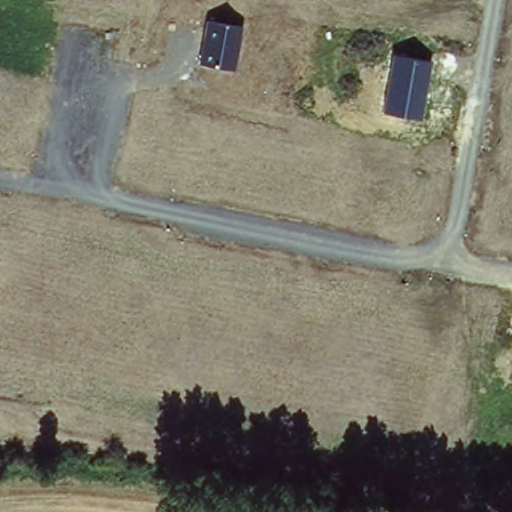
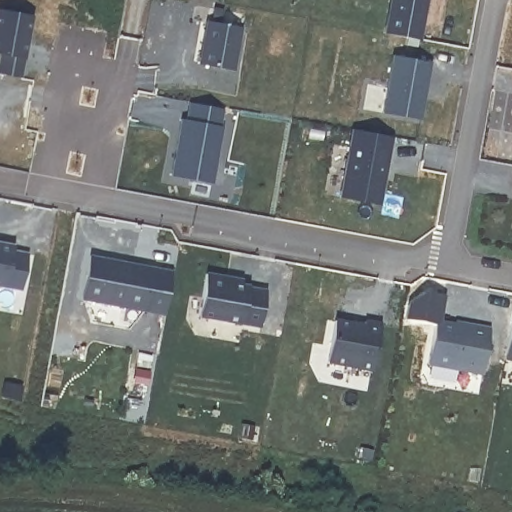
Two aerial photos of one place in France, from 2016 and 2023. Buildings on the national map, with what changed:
new [(393,0),(429,0),(421,41),(386,34),(393,0)]
new [(23,73),(0,68),(0,60),(2,49),(0,48),(0,4),(35,11),(23,73)]
unchanged [(243,27),(235,71),(198,64),(206,20),(243,27)]
unchanged [(422,120),(382,112),(393,54),(432,62),(422,120)]
new [(225,104),(221,121),(224,122),(213,178),(171,170),(182,114),(187,115),(190,97),(225,104)]
new [(394,136),(381,205),(339,197),(352,130),(394,136)]
new [(22,284),(0,280),(0,238),(14,241),(13,246),(29,249),(22,284)]
new [(167,310),(83,295),(91,251),(175,266),(167,310)]
new [(264,322),(201,310),(208,269),(232,274),(231,278),(271,286),(264,322)]
new [(372,368),(327,359),(336,317),(365,323),(366,318),(382,321),(372,368)]
new [(484,377),(430,367),(438,325),(470,332),(471,329),(493,333),(484,377)]

